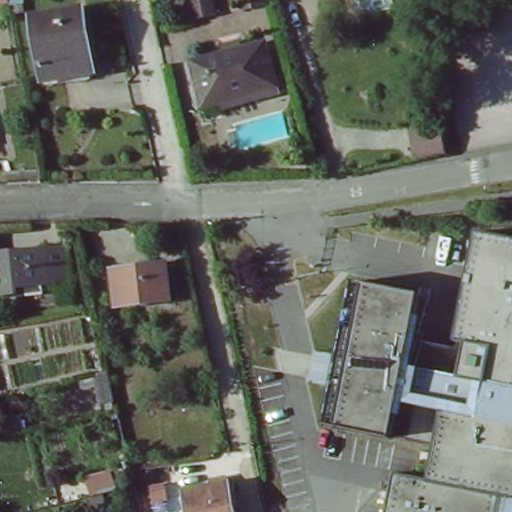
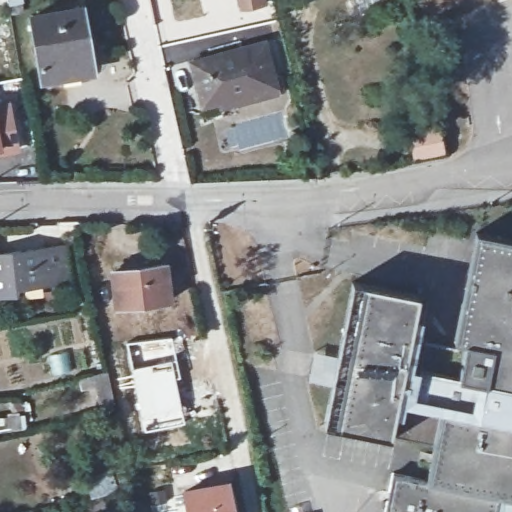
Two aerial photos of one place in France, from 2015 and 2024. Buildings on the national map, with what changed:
unchanged [(6,3),(0,4),(0,0),(6,0),(6,3)]
unchanged [(218,19),(190,23),(183,1),(189,0),(212,0),(218,19)]
unchanged [(266,8),(238,13),(234,0),(264,0),(266,8)]
unchanged [(82,75),(42,81),(30,17),(80,9),(83,32),(91,73),(82,75)]
unchanged [(201,106),(189,62),(263,42),(272,81),(274,87),(219,101),(201,106)]
unchanged [(445,157),(410,163),(402,126),(435,118),(443,146),(445,157)]
unchanged [(512,241),(512,499),(500,496),(496,512),(386,512),(393,475),(428,482),(442,410),(478,417),(491,348),(456,341),(477,234),(512,241)]
unchanged [(0,294),(0,251),(40,248),(58,247),(60,282),(43,283),(10,286),(10,293),(0,294)]
unchanged [(116,307),(112,270),(164,264),(168,300),(116,307)]
unchanged [(419,295),(416,318),(422,319),(420,334),(456,341),(470,344),(491,348),(478,417),(442,410),(398,403),(390,437),(330,427),(356,283),(419,295)]
new [(173,334),(176,355),(130,366),(125,342),(173,334)]
new [(176,355),(180,375),(178,376),(186,424),(141,432),(130,366),(176,355)]
unchanged [(113,402),(100,404),(96,387),(81,390),(78,378),(94,375),(106,372),(113,402)]
new [(111,464),(119,488),(87,498),(80,475),(111,464)]
unchanged [(226,484),(231,512),(187,512),(183,492),(226,484)]
unchanged [(91,512),(88,499),(102,496),(105,510),(98,512),(91,512)]

